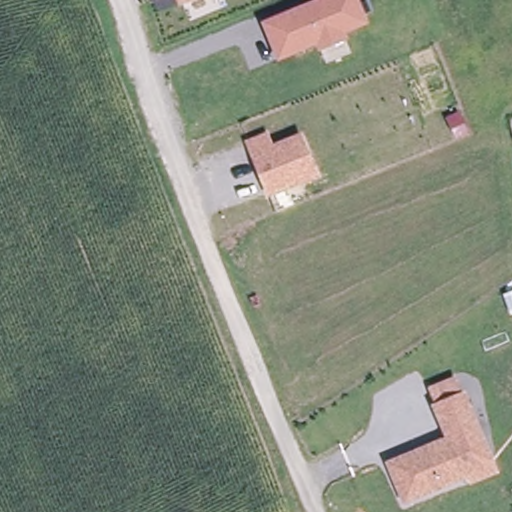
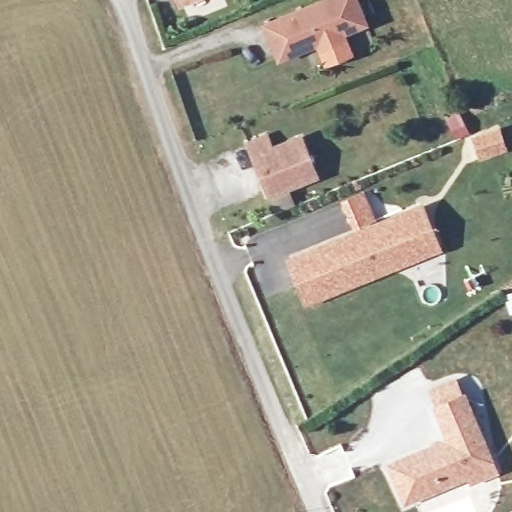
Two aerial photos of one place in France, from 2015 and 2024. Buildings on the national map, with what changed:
unchanged [(198,0),(177,9),(174,0),(198,0)]
unchanged [(359,0),(369,25),(345,35),(347,40),(319,51),(316,45),(277,61),(262,22),(318,0),(359,0)]
new [(498,129),(504,149),(480,156),(474,137),(498,129)]
unchanged [(271,130),(275,142),(303,132),(322,179),(267,199),(246,139),(271,130)]
new [(443,249),(306,304),(286,257),(423,200),(443,249)]
unchanged [(478,483),(475,477),(410,501),(394,464),(454,439),(441,407),(468,395),(493,455),(501,474),(478,483)]

